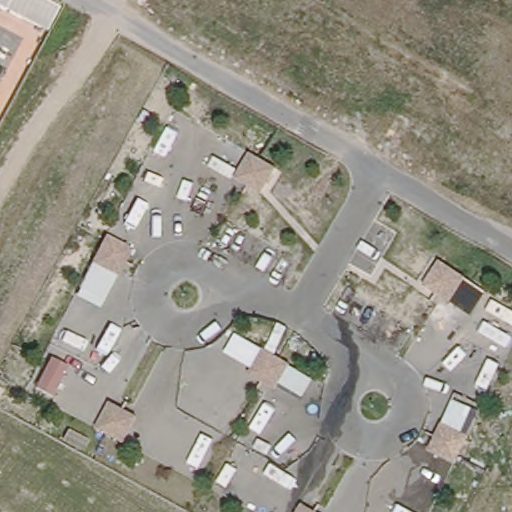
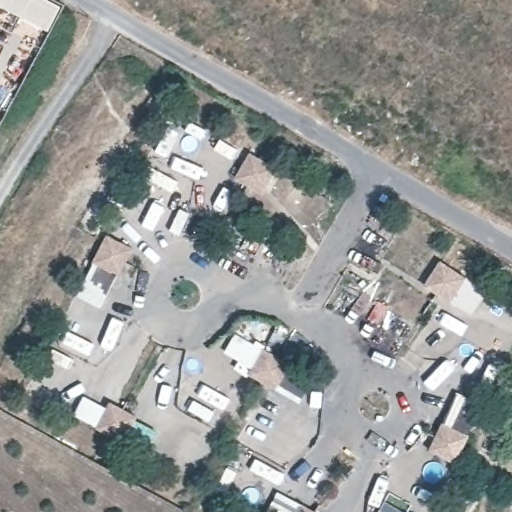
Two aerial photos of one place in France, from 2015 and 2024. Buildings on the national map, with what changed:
unchanged [(50,33),(0,4),(0,0),(51,0),(64,7),(50,33)]
unchanged [(250,149),(278,162),(263,190),(235,179),(250,149)]
unchanged [(107,229),(136,245),(120,274),(92,260),(107,229)]
unchanged [(440,260),(465,275),(452,300),(425,288),(440,260)]
unchanged [(266,346),(292,361),(278,388),(252,373),(266,346)]
unchanged [(111,398),(140,414),(126,442),(97,427),(111,398)]
unchanged [(443,421),(468,435),(455,460),(431,446),(443,421)]
unchanged [(304,500),(323,512),(297,512),(304,500)]

